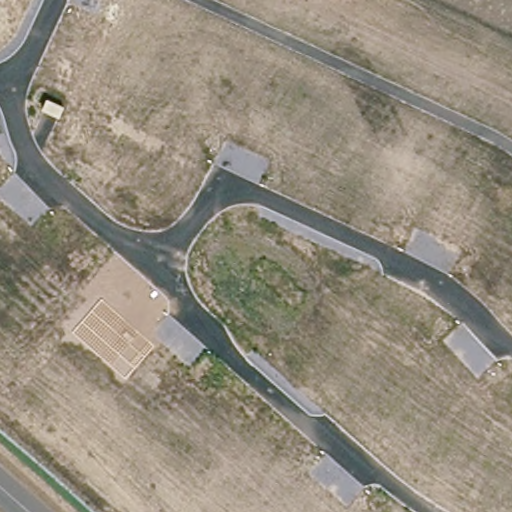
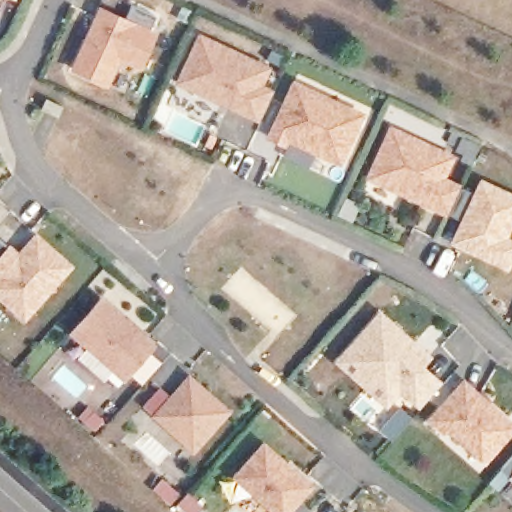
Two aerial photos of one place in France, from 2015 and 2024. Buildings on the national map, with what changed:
new [(120,60),(108,85),(72,68),(99,5),(159,33),(142,68),(120,60)]
new [(183,76),(204,31),(272,63),(263,81),(277,87),(264,114),(250,108),(240,103),(183,76)]
new [(365,114),(342,167),(289,141),(286,148),(264,140),(293,80),(365,114)]
new [(461,219),(447,212),(445,215),(368,177),(390,125),(456,155),(447,175),(462,183),(461,186),(474,192),(481,177),(512,192),(512,230),(509,237),(512,238),(512,263),(509,269),(451,241),(461,219)]
new [(0,302),(0,241),(7,248),(11,244),(18,252),(37,231),(74,267),(24,323),(0,302)]
unchanged [(105,294),(158,340),(129,374),(76,327),(105,294)]
new [(418,406),(401,392),(389,406),(334,362),(379,311),(433,355),(424,364),(443,381),(418,406)]
new [(164,381),(175,391),(193,370),(233,406),(198,446),(147,400),(164,381)]
unchanged [(512,415),(512,431),(490,456),(451,422),(448,426),(435,414),(468,377),(512,415)]
new [(296,464),(315,481),(301,496),(313,506),(308,512),(286,512),(239,471),(268,439),(290,459),(296,464)]
new [(501,468),(512,455),(512,476),(511,476),(501,468)]

